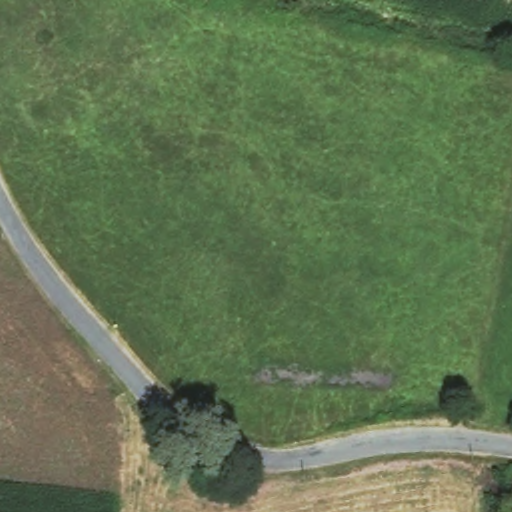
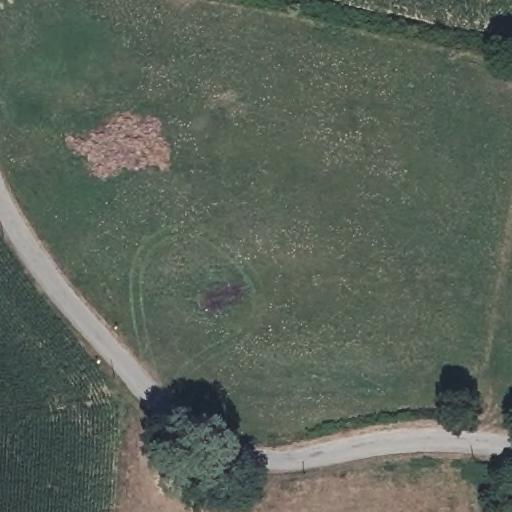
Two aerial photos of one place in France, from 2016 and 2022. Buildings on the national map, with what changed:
[]

